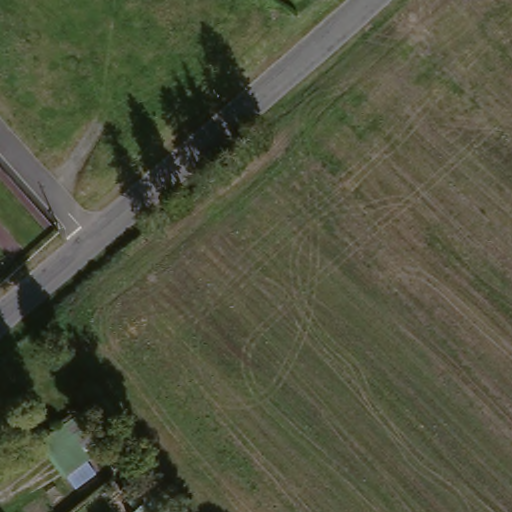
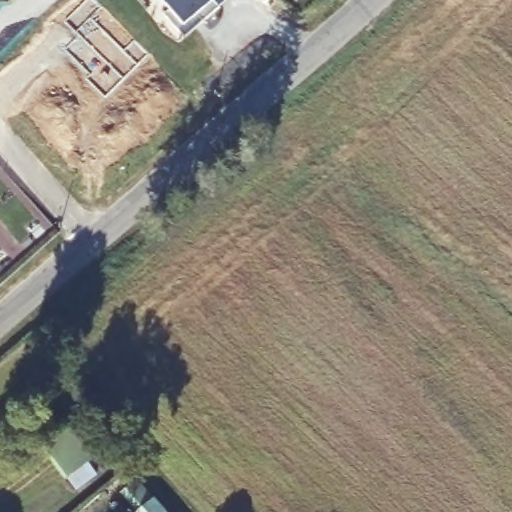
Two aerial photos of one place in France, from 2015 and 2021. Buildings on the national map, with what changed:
new [(164,16),(169,11),(160,0),(229,0),(184,38),(164,16)]
unchanged [(39,443),(60,426),(71,417),(98,450),(86,459),(65,476),(39,443)]
unchanged [(128,492),(140,482),(158,502),(166,512),(145,512),(128,492)]

